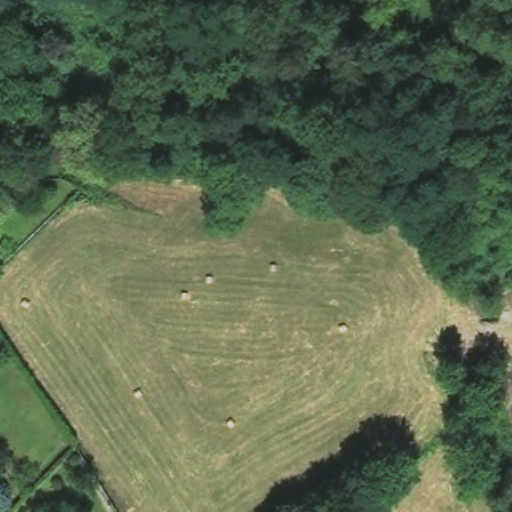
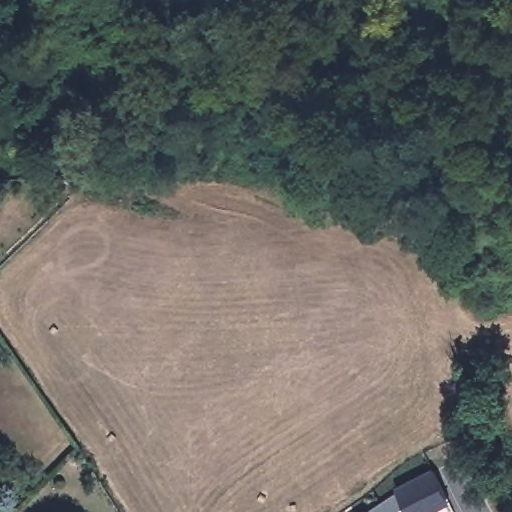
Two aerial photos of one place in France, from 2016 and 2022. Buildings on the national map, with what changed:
new [(377,505),(433,473),(449,503),(431,512),(372,512),(379,508),(377,505)]

